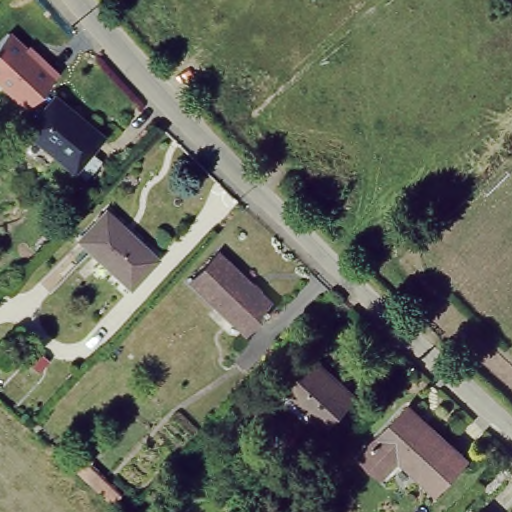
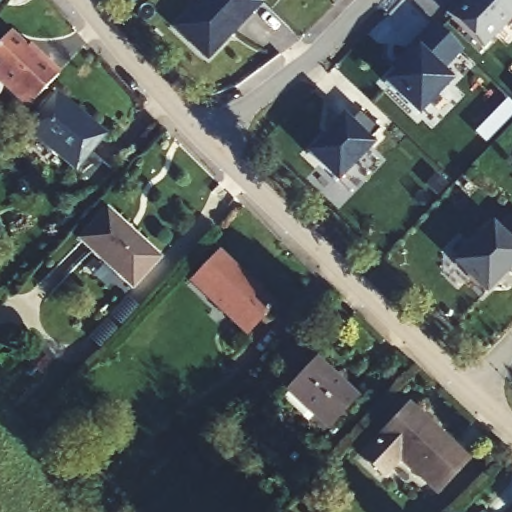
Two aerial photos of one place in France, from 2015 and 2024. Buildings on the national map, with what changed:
new [(261,4),(207,61),(172,29),(198,0),(257,0),(261,4)]
new [(482,48),(444,13),(455,0),(512,0),(512,19),(482,48)]
new [(461,50),(440,72),(450,80),(417,114),(385,83),(416,50),(411,46),(432,24),(461,50)]
unchanged [(27,108),(0,84),(0,39),(9,29),(57,73),(27,108)]
unchanged [(57,92),(101,134),(70,165),(27,123),(57,92)]
new [(349,121),(358,113),(377,131),(367,139),(372,146),(336,184),(304,155),(341,116),(349,121)]
unchanged [(108,209),(134,232),(157,255),(130,286),(78,241),(108,209)]
new [(501,229),(512,218),(512,262),(484,292),(454,264),(494,222),(501,229)]
unchanged [(223,249),(277,302),(252,330),(196,277),(223,249)]
unchanged [(282,395),(292,385),(320,357),(360,395),(332,424),(318,411),(309,421),(282,395)]
unchanged [(409,401),(466,455),(437,486),(400,452),(382,470),(361,451),(409,401)]
unchanged [(488,512),(481,512),(485,509),(488,512)]

